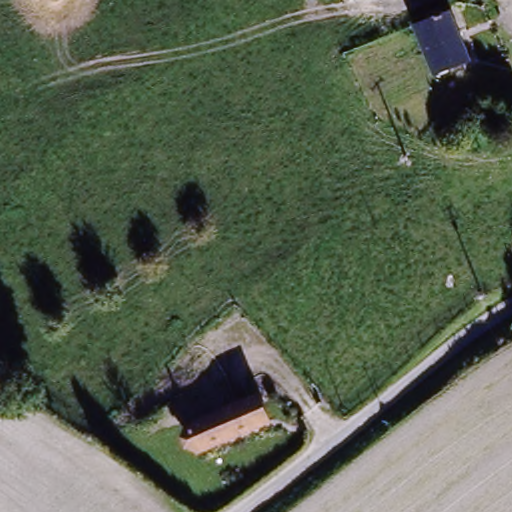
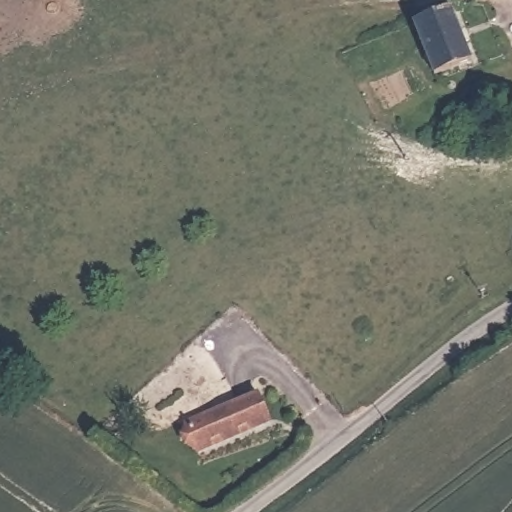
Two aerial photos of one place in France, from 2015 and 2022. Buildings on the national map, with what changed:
unchanged [(448,14),(469,61),(435,76),(414,28),(448,14)]
unchanged [(197,453),(186,426),(257,396),(268,424),(197,453)]

